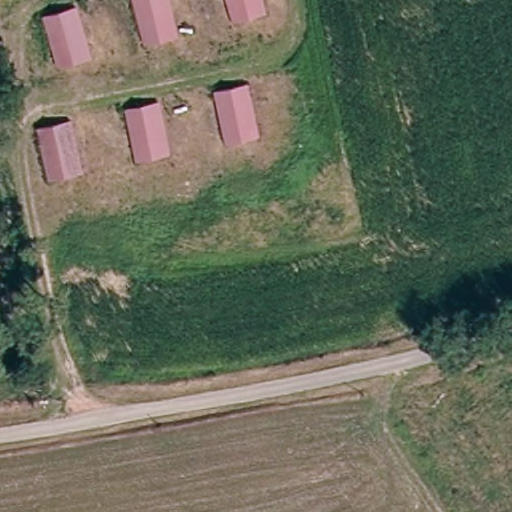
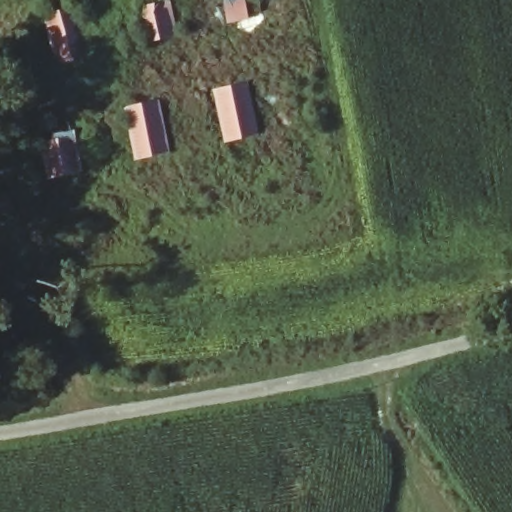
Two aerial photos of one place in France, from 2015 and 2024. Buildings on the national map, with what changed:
unchanged [(133,0),(172,0),(181,39),(143,45),(133,0)]
unchanged [(227,0),(266,0),(269,11),(233,22),(227,0)]
unchanged [(58,67),(42,14),(76,6),(97,57),(58,67)]
unchanged [(224,145),(215,90),(248,85),(264,134),(224,145)]
unchanged [(125,105),(160,99),(170,152),(137,162),(125,105)]
unchanged [(37,129),(73,119),(84,167),(49,184),(37,129)]

